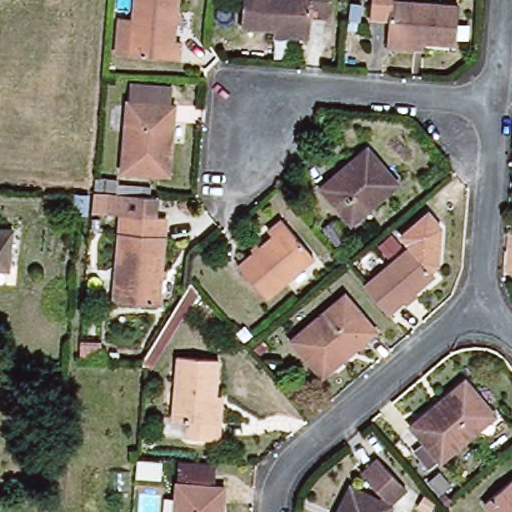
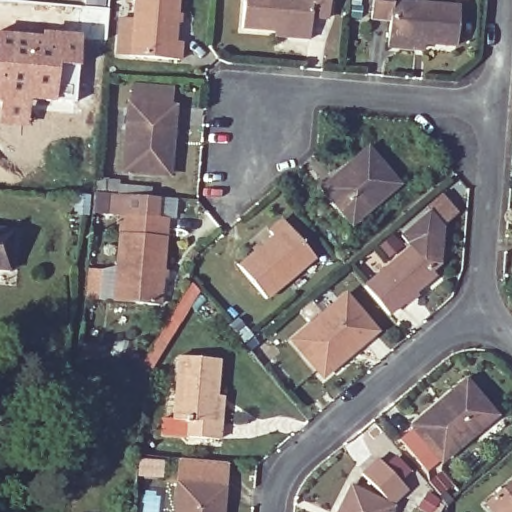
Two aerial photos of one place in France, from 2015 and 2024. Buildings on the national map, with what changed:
unchanged [(175,43),(174,61),(123,58),(128,0),(172,0),(167,42),(175,43)]
unchanged [(310,20),(308,35),(241,29),(243,0),(328,0),(326,21),(310,20)]
unchanged [(456,8),(454,47),(387,41),(387,23),(368,21),(370,0),(391,0),(391,4),(456,8)]
new [(55,102),(30,102),(27,126),(0,125),(0,33),(40,35),(40,30),(79,34),(80,20),(105,23),(104,40),(80,38),(78,67),(75,102),(55,102)]
unchanged [(179,120),(170,120),(166,170),(124,167),(129,99),(180,102),(179,120)]
unchanged [(338,178),(370,151),(398,183),(349,225),(318,187),(332,173),(338,178)]
unchanged [(158,201),(157,225),(166,226),(159,310),(111,306),(118,221),(105,219),(105,198),(158,201)]
unchanged [(429,210),(443,228),(440,264),(429,272),(400,235),(429,210)]
unchanged [(265,303),(239,270),(273,239),(268,234),(280,224),(313,262),(265,303)]
unchanged [(9,270),(0,270),(0,233),(12,234),(9,270)]
unchanged [(366,293),(409,254),(432,281),(388,319),(366,293)]
new [(188,286),(195,294),(181,315),(147,368),(140,364),(173,310),(188,286)]
unchanged [(377,335),(363,347),(358,343),(320,375),(292,342),(343,299),(377,335)]
unchanged [(173,420),(177,358),(222,361),(216,424),(222,424),(221,440),(186,437),(172,436),(173,420)]
unchanged [(495,416),(441,460),(412,426),(465,381),(495,416)]
unchanged [(356,473),(368,458),(402,487),(386,506),(383,512),(334,512),(347,485),(375,500),(381,493),(356,473)]
unchanged [(512,480),(512,512),(493,512),(485,503),(512,480)]
unchanged [(227,507),(222,506),(222,512),(175,512),(176,484),(229,489),(227,507)]

